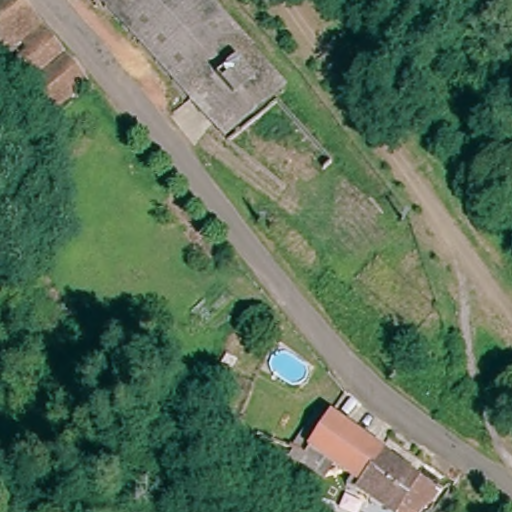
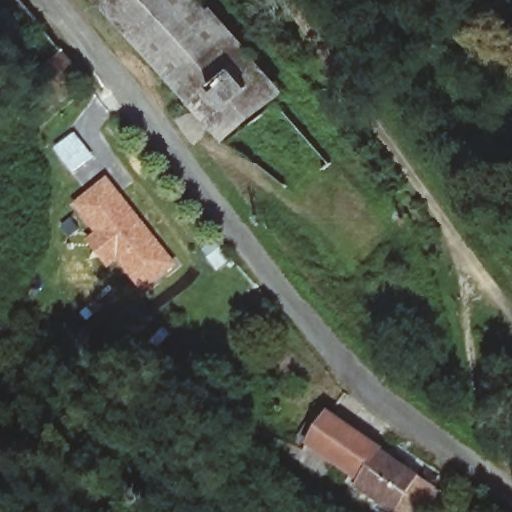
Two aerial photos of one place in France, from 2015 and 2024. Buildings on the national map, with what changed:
unchanged [(0,0),(24,0),(91,81),(41,123),(0,74),(0,0)]
unchanged [(192,109),(96,0),(202,0),(252,58),(192,109)]
unchanged [(225,145),(192,109),(252,58),(283,92),(225,145)]
new [(75,132),(95,157),(73,175),(52,149),(75,132)]
new [(107,176),(176,264),(141,292),(116,262),(105,268),(86,238),(93,232),(71,205),(107,176)]
unchanged [(417,477),(440,492),(425,512),(394,512),(334,470),(324,481),(290,461),(318,406),(331,414),(417,477)]

